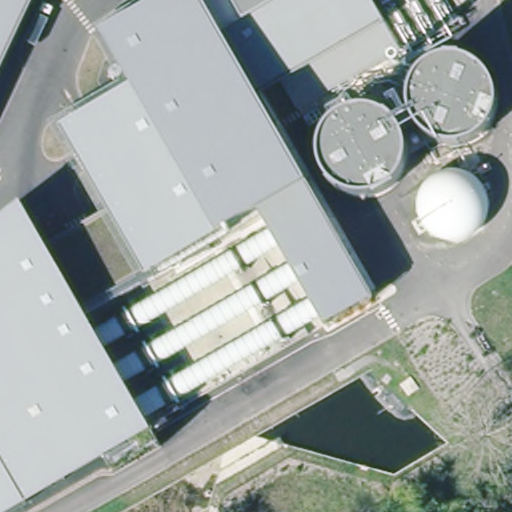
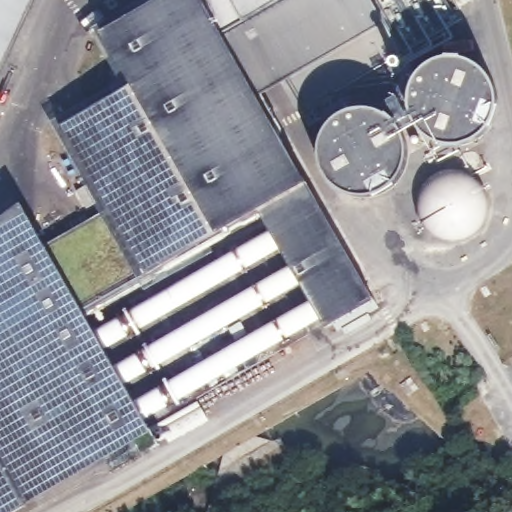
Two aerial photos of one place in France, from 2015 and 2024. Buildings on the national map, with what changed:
unchanged [(35,0),(0,76),(0,0),(35,0)]
unchanged [(300,118),(282,79),(260,91),(372,299),(328,325),(259,214),(89,315),(163,446),(147,454),(138,442),(14,512),(0,512),(0,218),(22,202),(45,242),(110,211),(60,126),(132,81),(102,30),(145,0),(372,0),(403,56),(300,118)]

